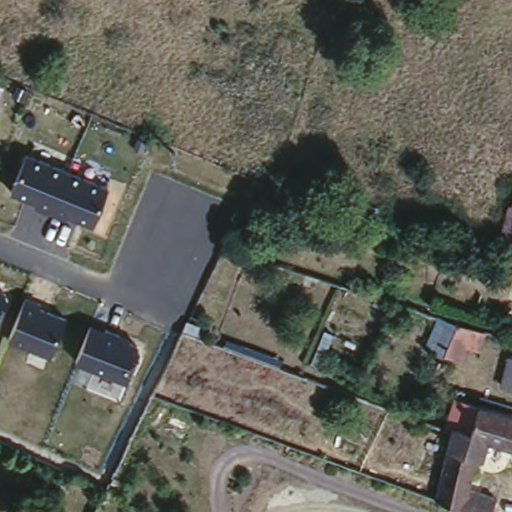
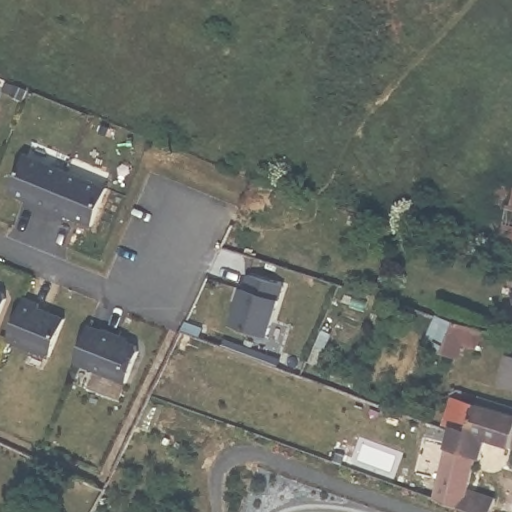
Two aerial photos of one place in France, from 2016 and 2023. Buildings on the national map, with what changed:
unchanged [(27,152),(107,185),(92,225),(10,192),(27,152)]
unchanged [(500,214),(508,186),(512,188),(512,235),(502,232),(506,216),(500,214)]
unchanged [(512,248),(511,247),(509,247),(511,241),(512,241),(512,248)]
new [(267,333),(232,322),(249,268),(283,282),(267,333)]
unchanged [(7,294),(0,313),(0,291),(7,294)]
unchanged [(24,297),(42,303),(41,308),(65,317),(50,355),(6,339),(24,297)]
unchanged [(460,356),(427,345),(436,315),(470,326),(460,356)]
unchanged [(89,323),(141,343),(127,383),(74,362),(89,323)]
unchanged [(506,353),(512,355),(512,387),(497,383),(506,353)]
unchanged [(471,446),(474,431),(460,426),(466,401),(481,406),(512,414),(512,448),(500,444),(497,454),(471,446)]
unchanged [(437,480),(443,482),(452,447),(454,436),(470,440),(467,451),(480,455),(473,480),(503,491),(499,503),(495,512),(468,512),(467,511),(432,498),(437,480)]

